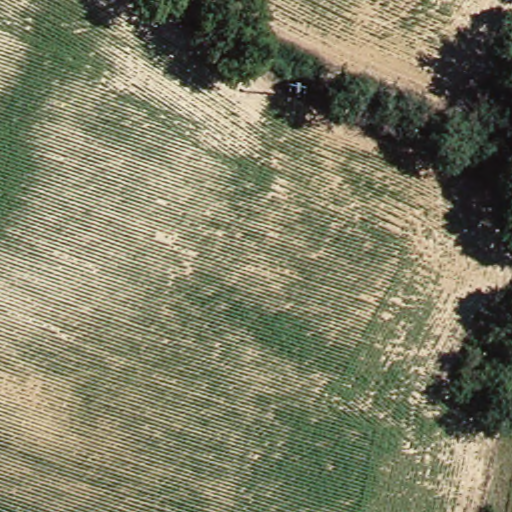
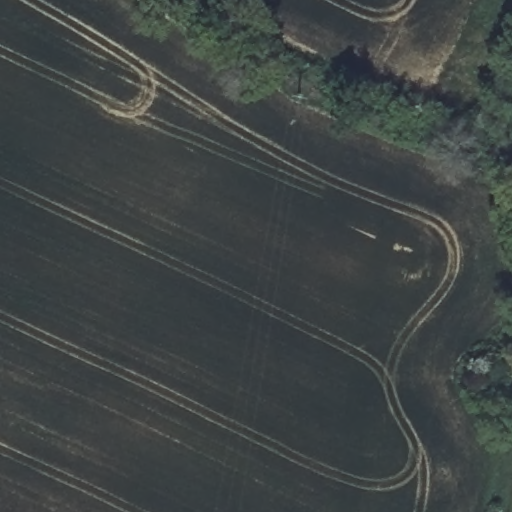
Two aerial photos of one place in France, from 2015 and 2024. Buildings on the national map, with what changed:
[]

